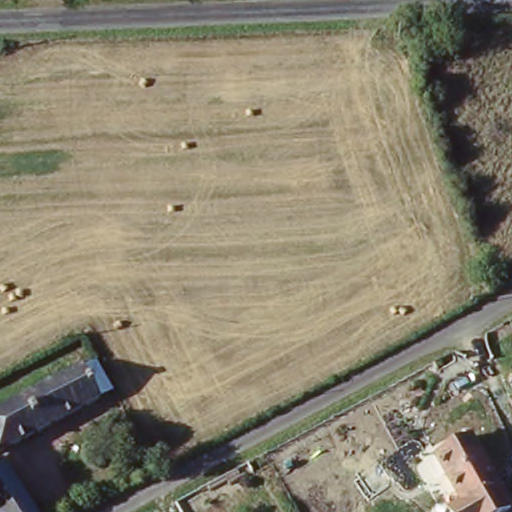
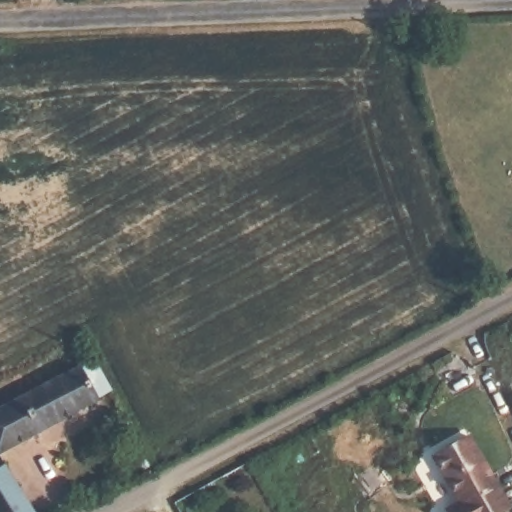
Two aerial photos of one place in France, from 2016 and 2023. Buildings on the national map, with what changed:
unchanged [(0,453),(0,410),(98,360),(114,391),(103,402),(0,453)]
unchanged [(512,498),(512,503),(497,512),(456,512),(452,506),(465,497),(438,453),(473,432),(512,498)]
unchanged [(0,462),(3,461),(35,512),(0,512),(0,462)]

